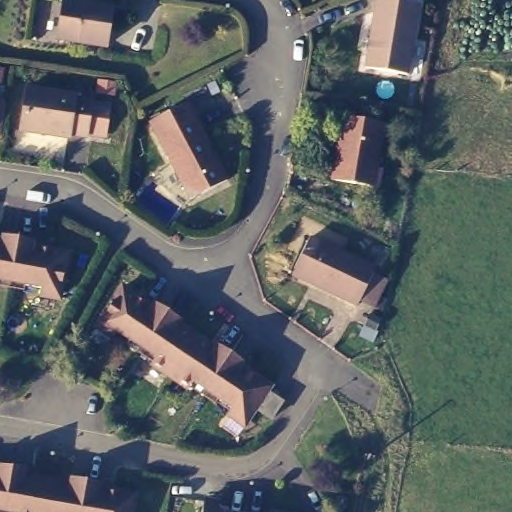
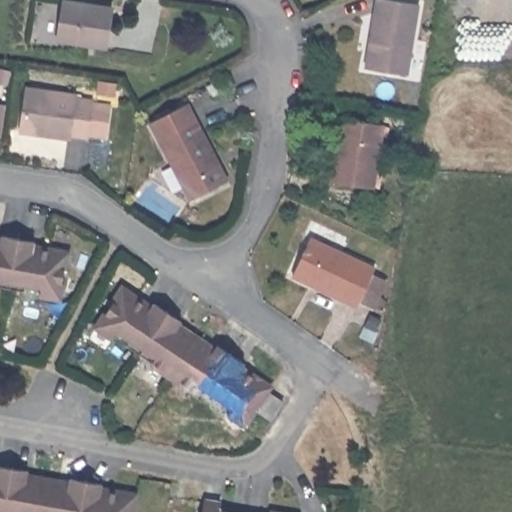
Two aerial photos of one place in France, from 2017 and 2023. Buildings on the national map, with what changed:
unchanged [(65,0),(85,0),(112,4),(107,45),(79,40),(60,37),(65,0)]
unchanged [(422,6),(410,79),(371,70),(382,0),(422,6)]
unchanged [(94,138),(78,135),(78,140),(27,132),(34,90),(82,97),(81,100),(99,102),(94,138)]
unchanged [(231,184),(195,201),(153,122),(189,102),(231,184)]
unchanged [(382,124),(373,183),(334,176),(343,116),(382,124)]
unchanged [(41,296),(42,291),(0,284),(0,242),(5,243),(6,238),(36,242),(36,247),(69,252),(62,300),(41,296)]
unchanged [(381,268),(379,275),(390,280),(378,307),(367,301),(364,307),(299,278),(316,240),(381,268)]
unchanged [(151,303),(154,300),(182,316),(181,318),(213,342),(214,340),(244,359),(241,362),(272,383),(270,388),(285,398),(272,418),(256,407),(243,423),(227,412),(230,406),(194,382),(189,388),(149,360),(153,355),(118,330),(113,337),(97,325),(124,285),(151,303)]
unchanged [(32,474),(31,478),(75,485),(75,481),(108,486),(108,492),(139,496),(136,512),(0,512),(0,469),(32,474)]
unchanged [(224,503),(224,508),(247,512),(205,512),(207,501),(224,503)]
unchanged [(275,511),(278,512),(275,512),(275,511)]

